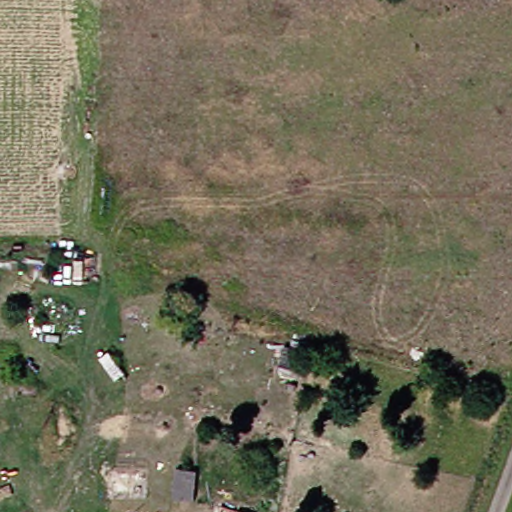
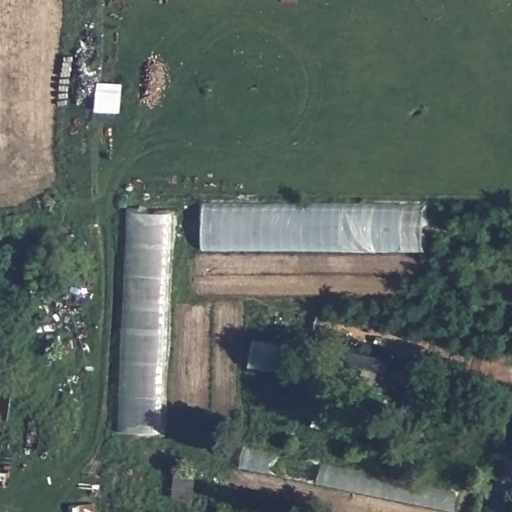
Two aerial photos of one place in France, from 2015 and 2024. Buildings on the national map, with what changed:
new [(206,203),(425,207),(425,249),(205,248),(206,203)]
new [(162,435),(115,435),(127,210),(173,212),(162,435)]
new [(196,497),(176,500),(172,474),(192,471),(196,497)]
unchanged [(221,509),(224,503),(246,511),(249,512),(227,512),(221,509)]

